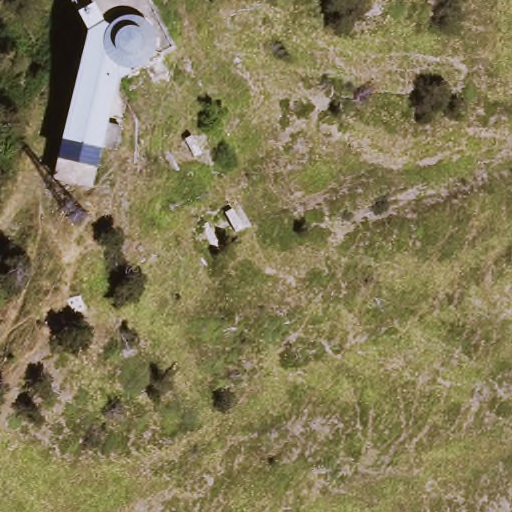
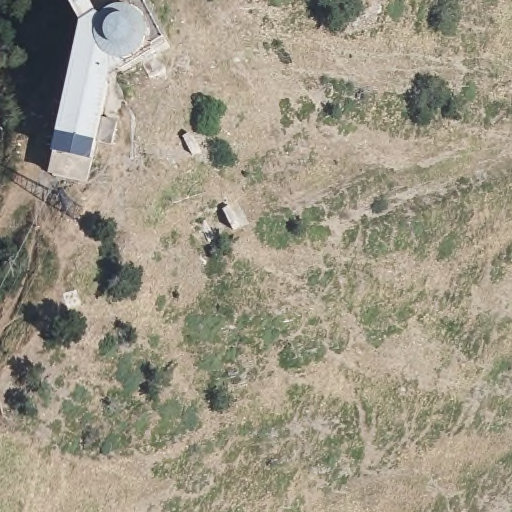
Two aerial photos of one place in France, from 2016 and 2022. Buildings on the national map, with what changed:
unchanged [(82,37),(65,0),(144,0),(177,61),(119,81),(86,199),(53,194),(70,97),(82,37)]

